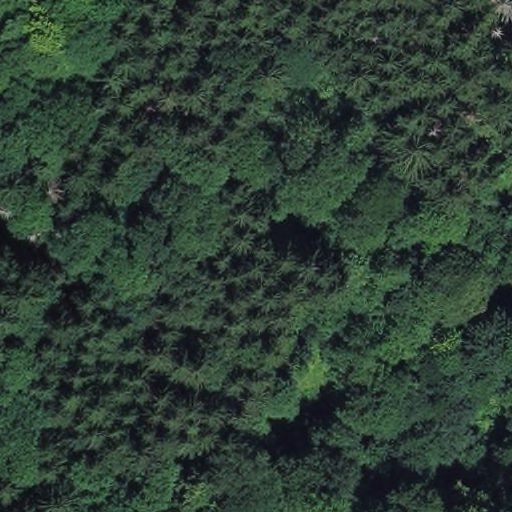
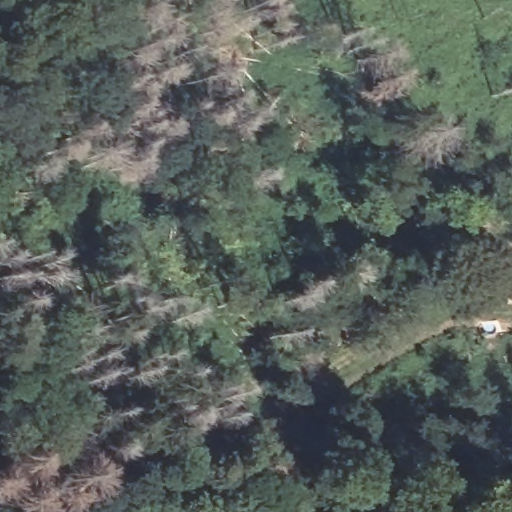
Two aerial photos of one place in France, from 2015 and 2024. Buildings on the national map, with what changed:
unchanged [(512,261),(512,269),(509,262),(512,261)]

